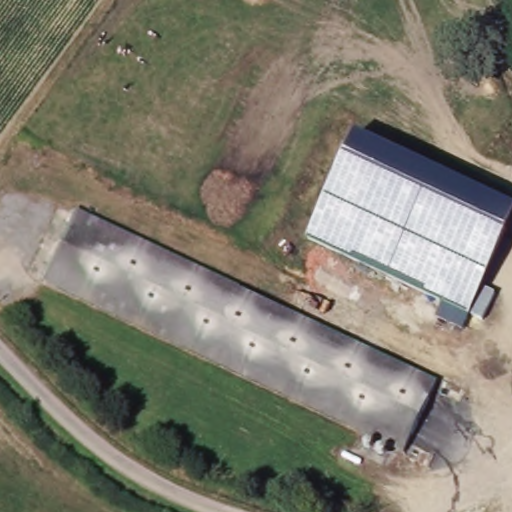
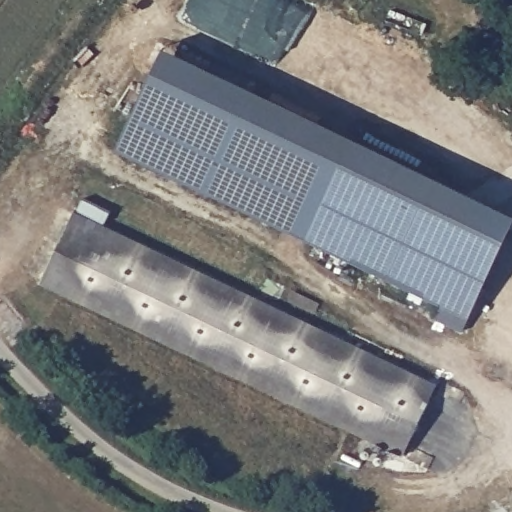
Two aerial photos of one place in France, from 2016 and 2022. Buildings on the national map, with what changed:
new [(117,149),(167,45),(357,135),(308,239),(117,149)]
unchanged [(512,232),(466,328),(436,316),(442,302),(308,239),(358,132),(512,209),(512,232)]
unchanged [(80,207),(437,386),(405,453),(45,273),(80,207)]

